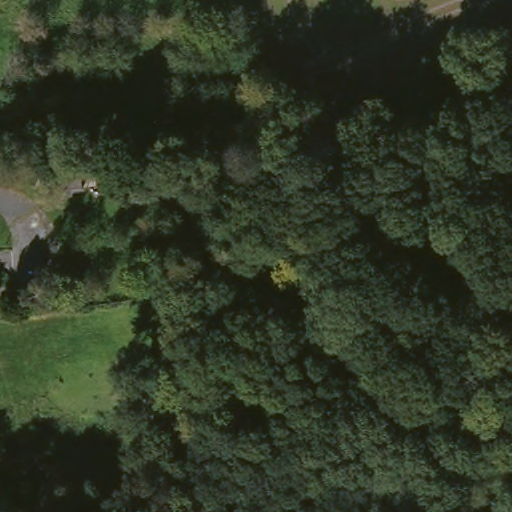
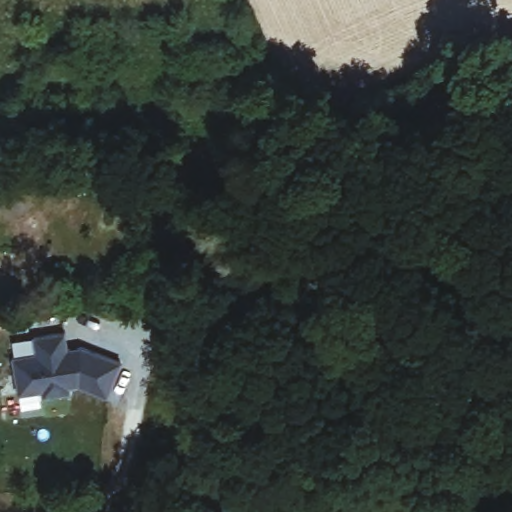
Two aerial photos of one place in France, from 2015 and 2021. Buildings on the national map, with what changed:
unchanged [(81,163),(84,191),(65,193),(62,165),(81,163)]
new [(69,347),(83,345),(122,360),(108,398),(77,386),(71,387),(72,394),(42,398),(41,392),(17,395),(11,355),(35,352),(33,336),(67,330),(69,347)]

